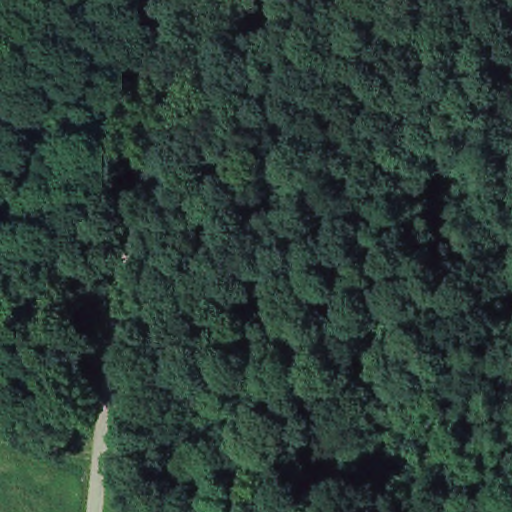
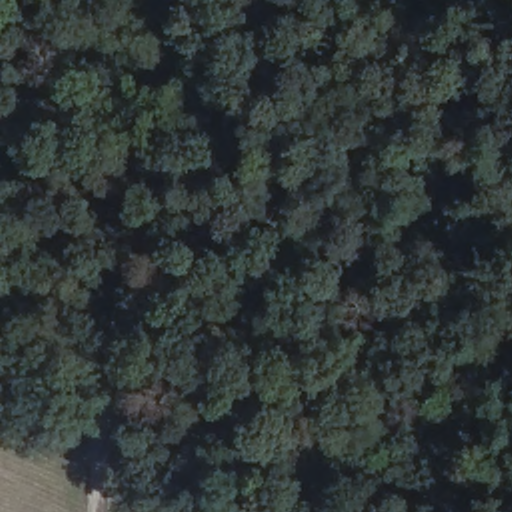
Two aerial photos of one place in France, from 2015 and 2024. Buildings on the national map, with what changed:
unchanged [(83,281),(85,267),(95,269),(93,282),(83,281)]

